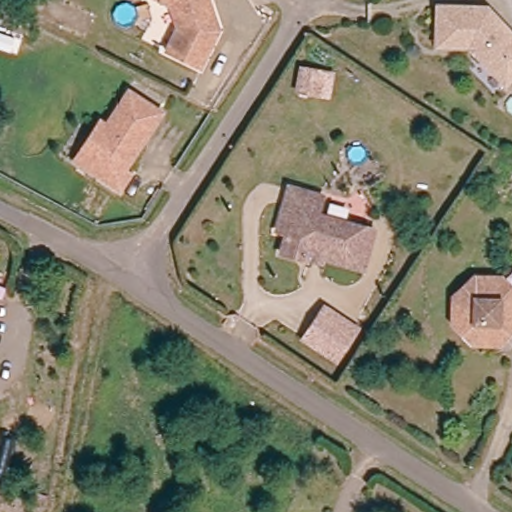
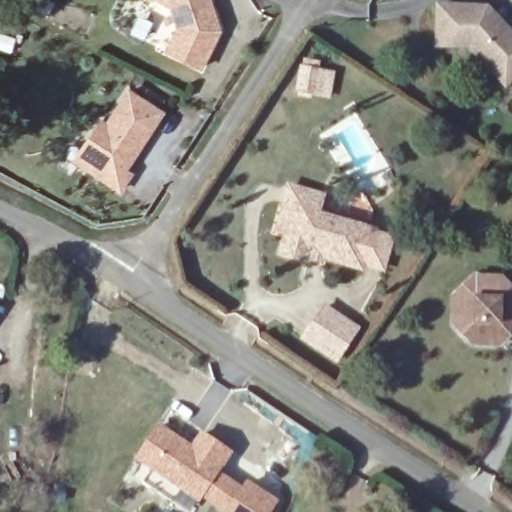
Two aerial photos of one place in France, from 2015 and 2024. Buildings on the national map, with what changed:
unchanged [(228,32),(209,70),(175,52),(188,29),(181,7),(171,2),(167,0),(219,0),(228,32)]
unchanged [(497,65),(474,40),(441,39),(443,0),(491,2),(512,24),(512,77),(510,79),(497,65)]
unchanged [(311,67),(327,70),(323,86),(307,82),(311,67)]
unchanged [(88,140),(102,118),(109,122),(131,88),(163,109),(126,166),(132,171),(122,186),(91,166),(77,157),(88,140)]
unchanged [(322,194),(317,212),(373,226),(363,266),(305,252),(304,258),(281,253),(286,233),(275,230),(282,204),(287,186),(322,194)]
unchanged [(498,348),(468,346),(449,324),(450,294),(470,277),(501,278),(512,290),(512,334),(498,348)]
unchanged [(330,304),(363,325),(342,356),(310,334),(330,304)]
new [(234,483),(217,508),(204,500),(201,504),(133,459),(158,423),(191,446),(200,432),(232,453),(220,474),(234,483)]
new [(271,512),(222,512),(217,508),(234,483),(241,488),(246,479),(279,501),(271,512)]

